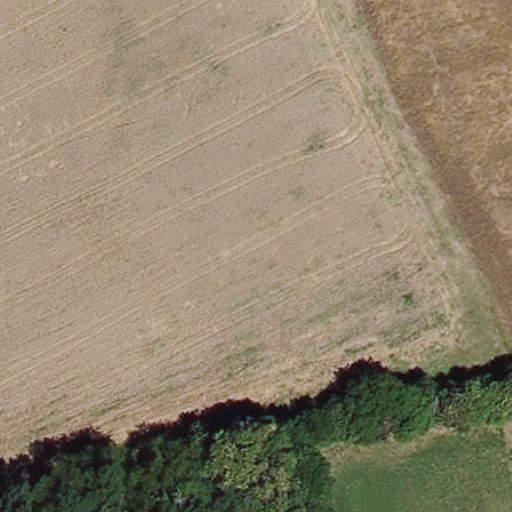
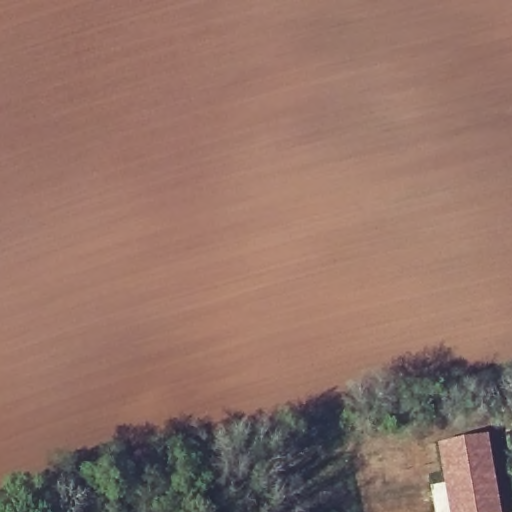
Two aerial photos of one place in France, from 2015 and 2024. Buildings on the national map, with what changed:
new [(498,512),(439,512),(433,480),(445,478),(440,445),(486,435),(498,512)]

